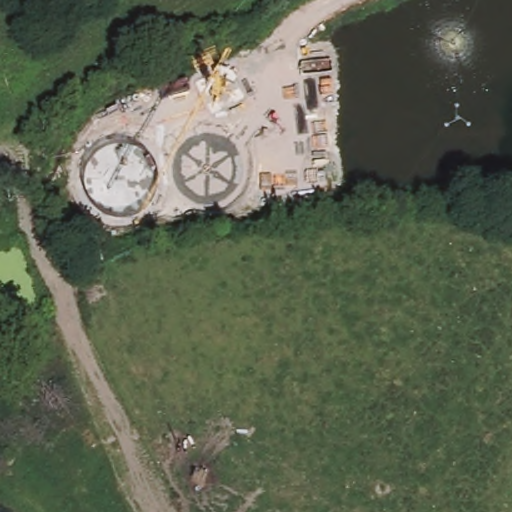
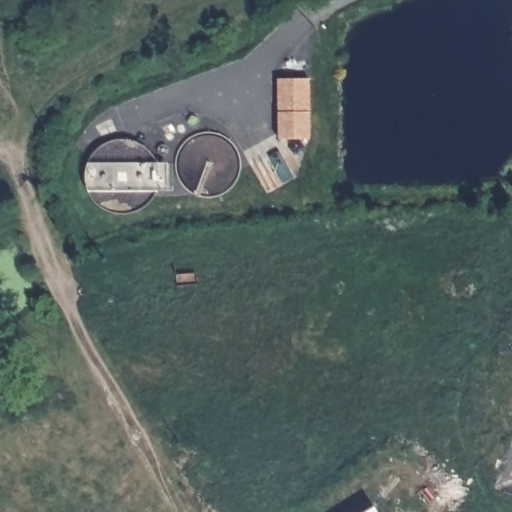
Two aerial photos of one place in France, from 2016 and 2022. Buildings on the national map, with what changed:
new [(276,138),(275,78),(308,78),(308,139),(276,138)]
new [(377,512),(362,512),(373,505),(377,512)]

